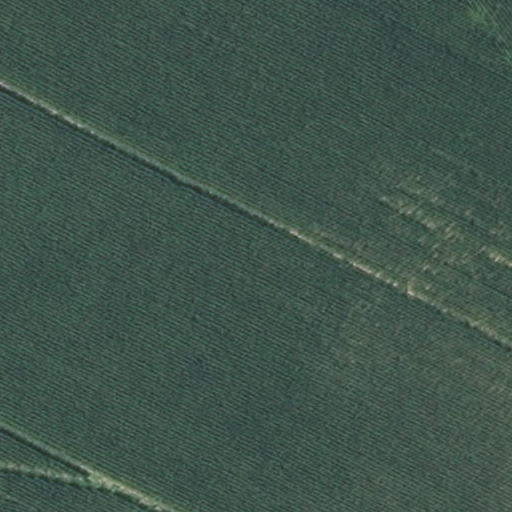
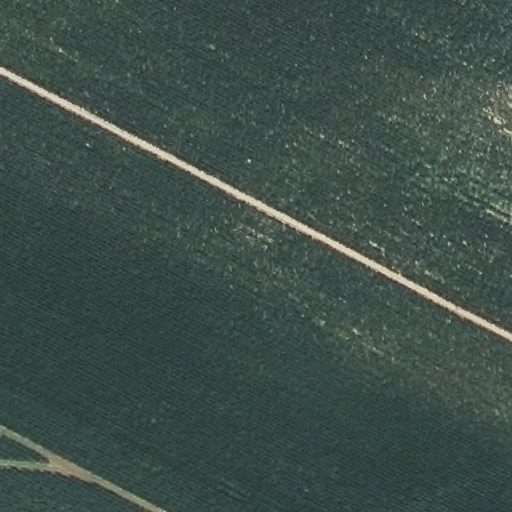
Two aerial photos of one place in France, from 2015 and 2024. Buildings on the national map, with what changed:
[]

